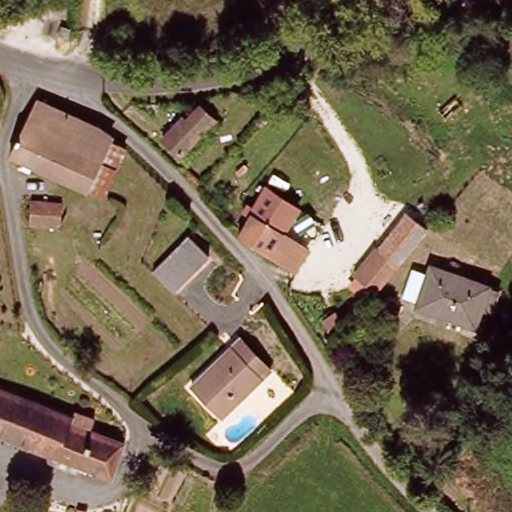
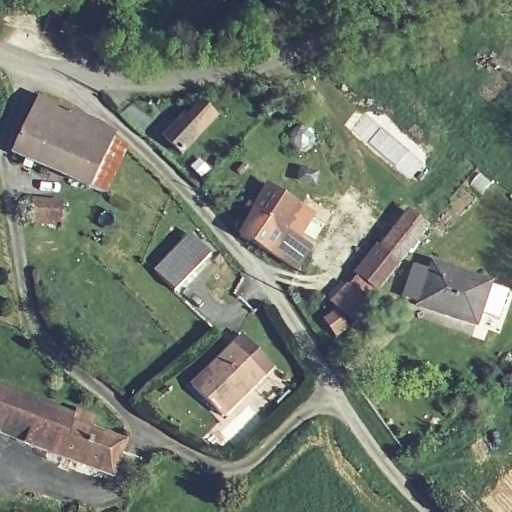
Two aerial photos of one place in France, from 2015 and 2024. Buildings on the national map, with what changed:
unchanged [(69,38),(67,44),(50,40),(53,18),(70,22),(69,29),(75,30),(74,39),(69,38)]
unchanged [(101,193),(89,188),(11,150),(37,96),(100,124),(99,127),(115,134),(112,141),(124,147),(101,193)]
unchanged [(167,139),(202,108),(214,119),(179,151),(167,139)]
unchanged [(240,236),(267,188),(299,206),(269,255),(265,253),(239,239),(240,236)]
unchanged [(69,229),(55,229),(25,228),(25,209),(58,210),(70,212),(69,229)]
unchanged [(429,231),(350,323),(325,307),(406,212),(429,231)]
unchanged [(297,272),(269,255),(284,230),(312,247),(297,272)]
unchanged [(155,269),(189,232),(210,252),(176,290),(155,269)]
unchanged [(417,307),(427,262),(488,278),(477,322),(417,307)]
unchanged [(190,388),(232,346),(244,333),(273,364),(261,376),(220,418),(190,388)]
unchanged [(92,434),(122,444),(109,479),(0,438),(0,391),(74,419),(76,413),(95,420),(92,434)]

